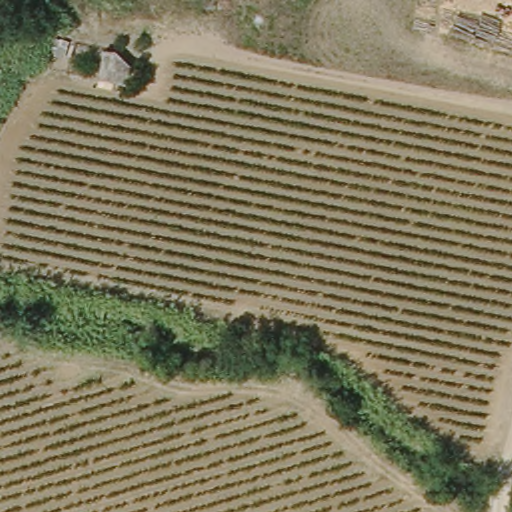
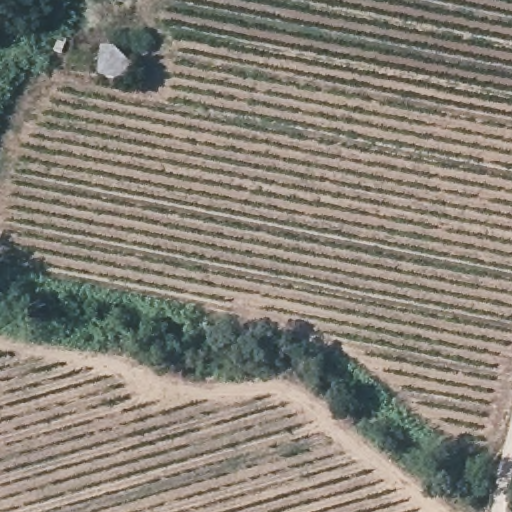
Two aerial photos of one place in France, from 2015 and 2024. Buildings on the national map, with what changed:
unchanged [(141,59),(133,71),(104,68),(100,66),(106,44),(137,48),(141,59)]

